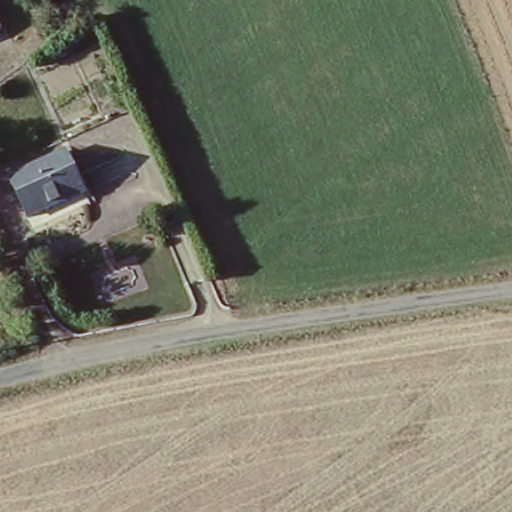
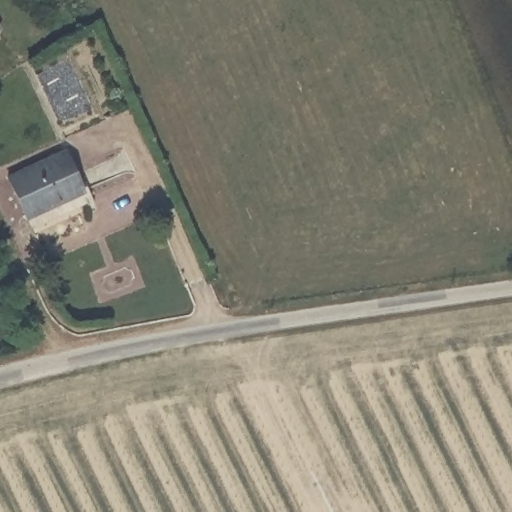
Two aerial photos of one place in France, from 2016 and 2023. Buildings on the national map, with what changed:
unchanged [(0,28),(0,19),(4,26),(0,28)]
unchanged [(67,152),(87,193),(32,219),(12,178),(67,152)]

